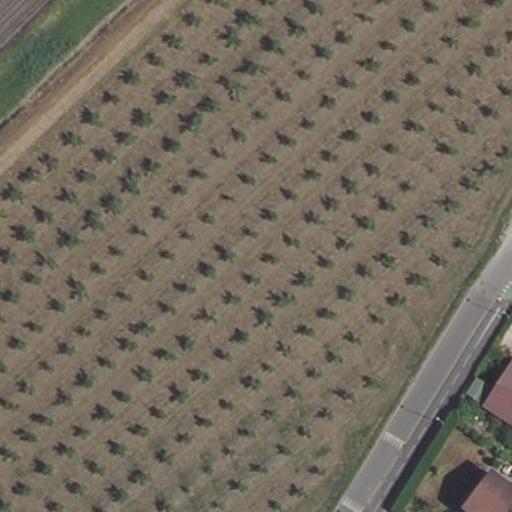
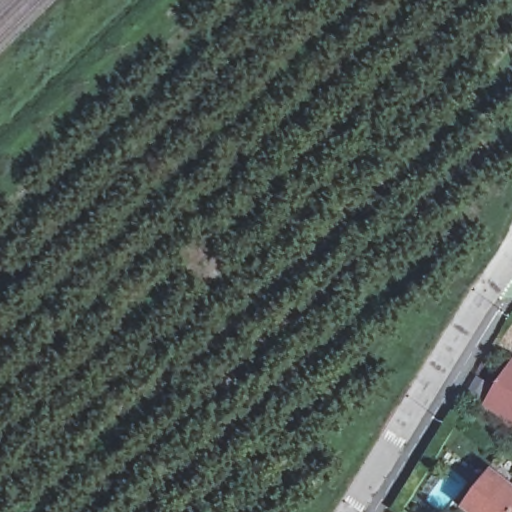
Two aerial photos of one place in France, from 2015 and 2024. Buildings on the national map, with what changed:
unchanged [(512,368),(512,420),(488,405),(512,368)]
unchanged [(494,472),(512,486),(512,512),(475,512),(468,507),(494,472)]

